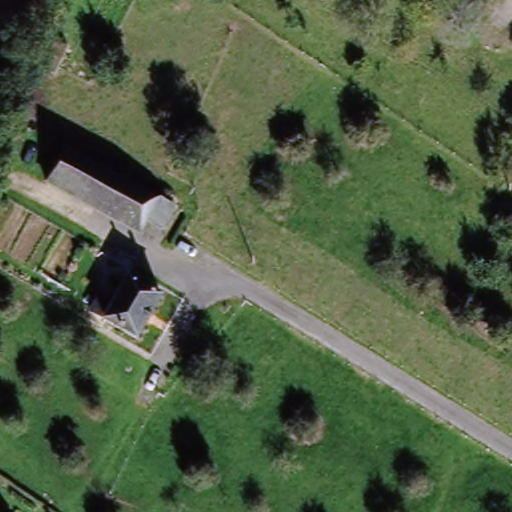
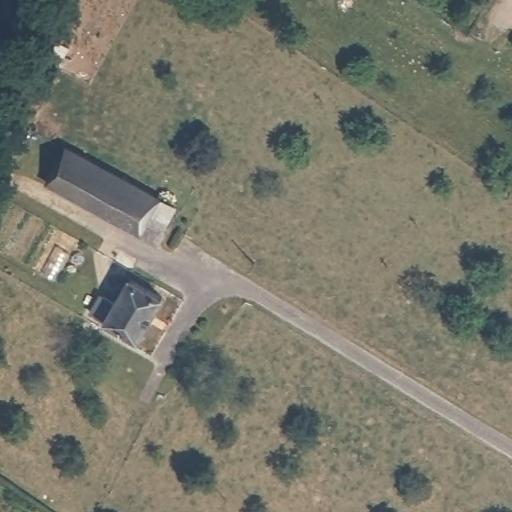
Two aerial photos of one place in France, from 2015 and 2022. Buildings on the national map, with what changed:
unchanged [(154,229),(139,221),(130,236),(33,182),(54,142),(168,207),(154,229)]
unchanged [(165,302),(140,346),(104,325),(86,315),(98,295),(116,305),(129,282),(165,302)]

